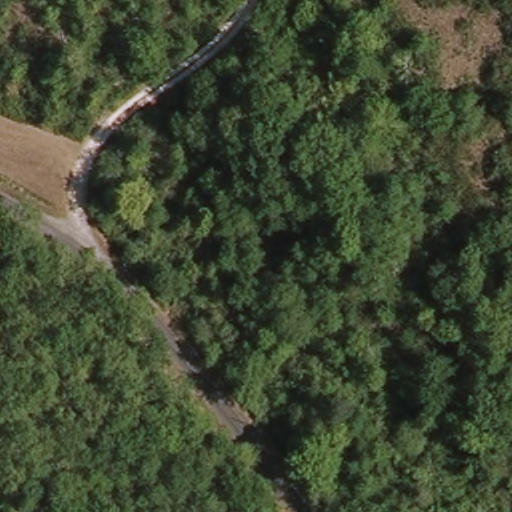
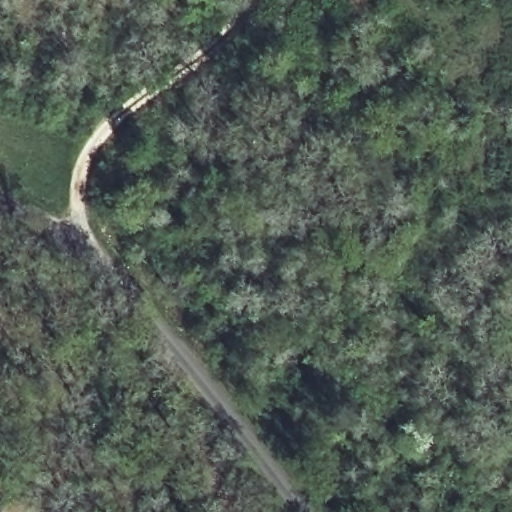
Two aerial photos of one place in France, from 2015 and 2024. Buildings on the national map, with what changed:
[]

